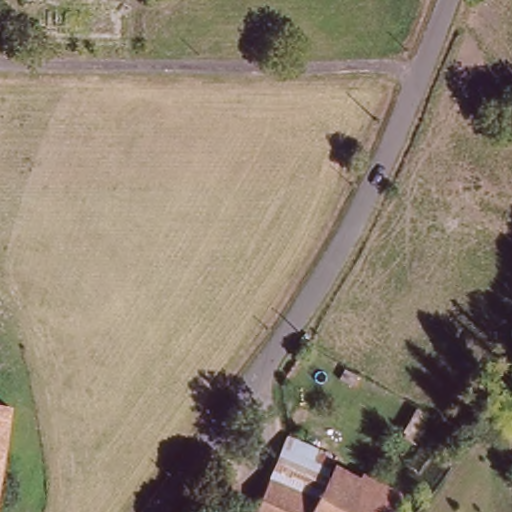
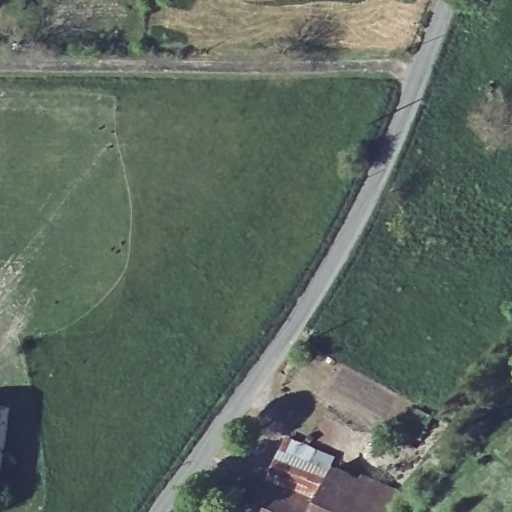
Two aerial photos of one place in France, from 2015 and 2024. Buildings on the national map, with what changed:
unchanged [(10,410),(0,472),(0,408),(10,410)]
unchanged [(418,439),(404,431),(417,408),(431,416),(418,439)]
unchanged [(287,442),(333,460),(330,473),(317,500),(320,501),(319,502),(338,512),(256,512),(282,454),(287,442)]
unchanged [(320,501),(336,471),(364,485),(351,512),(338,512),(319,502),(320,501)]
unchanged [(366,481),(402,498),(395,512),(351,512),(364,485),(366,481)]

